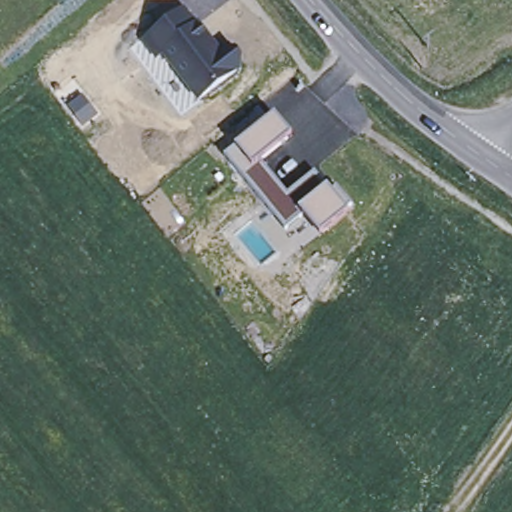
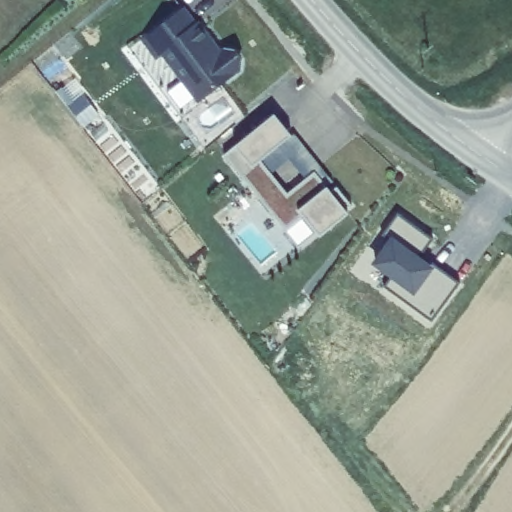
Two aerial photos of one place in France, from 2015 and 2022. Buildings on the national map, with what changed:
unchanged [(155,57),(143,40),(182,10),(195,25),(197,24),(207,38),(205,40),(217,55),(223,51),(231,51),(238,61),(237,70),(197,100),(161,53),(155,57)]
unchanged [(236,147),(275,116),(292,137),(261,159),(288,193),(317,172),(327,186),(348,213),(323,234),(305,211),(288,226),(230,156),(236,147)]
new [(400,216),(430,239),(419,257),(457,285),(432,321),(385,290),(390,279),(373,265),(390,242),(382,237),(400,216)]

